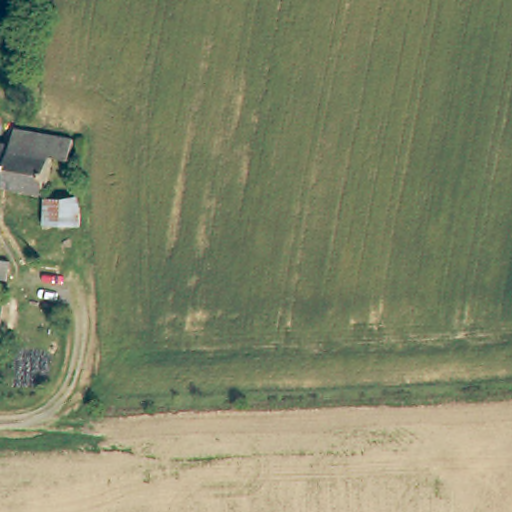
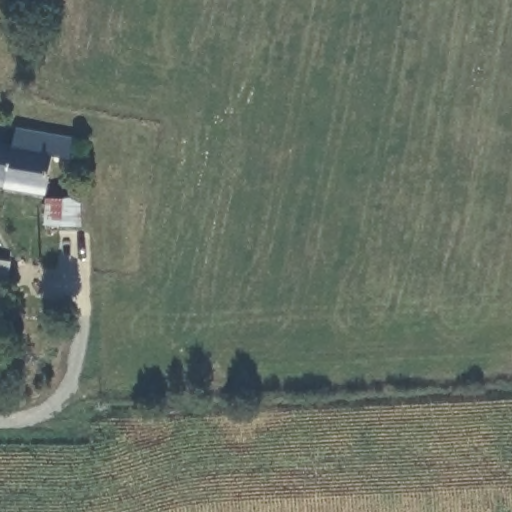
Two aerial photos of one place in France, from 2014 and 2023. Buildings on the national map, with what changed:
unchanged [(10,148),(13,130),(70,140),(67,160),(47,157),(43,195),(3,187),(10,148)]
unchanged [(3,187),(0,187),(0,146),(10,148),(3,187)]
unchanged [(79,226),(41,229),(40,200),(76,197),(79,226)]
unchanged [(0,275),(0,266),(1,266),(0,275)]

